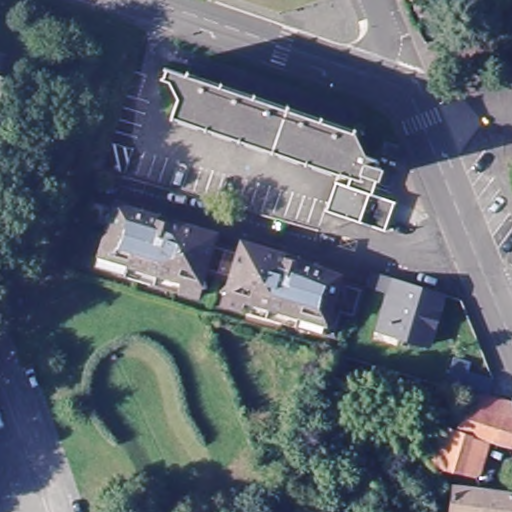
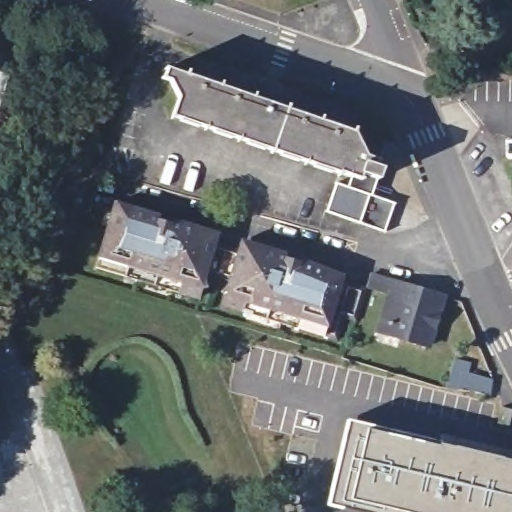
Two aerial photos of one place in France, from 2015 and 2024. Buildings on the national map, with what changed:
unchanged [(190,75),(192,69),(360,129),(367,161),(377,164),(374,171),(382,173),(376,191),(340,178),(175,117),(182,97),(177,85),(162,80),(167,67),(190,75)]
unchanged [(376,191),(374,199),(396,207),(386,236),(328,216),(340,178),(376,191)]
unchanged [(219,234),(217,243),(241,250),(243,242),(347,271),(345,280),(365,287),(356,322),(346,320),(339,342),(225,308),(232,282),(211,276),(203,301),(98,270),(117,206),(219,234)]
unchanged [(384,294),(368,288),(373,271),(442,295),(425,348),(383,335),(373,332),(384,294)]
demolished [(486,446),(475,483),(438,471),(450,431),(461,435),(473,396),(474,394),(462,391),(467,377),(495,384),(496,387),(492,402),(504,405),(512,407),(512,453),(491,448),(486,446)]
new [(512,460),(512,512),(358,512),(328,505),(347,422),(439,444),(512,460)]
demolished [(512,501),(512,512),(455,512),(457,494),(512,501)]

